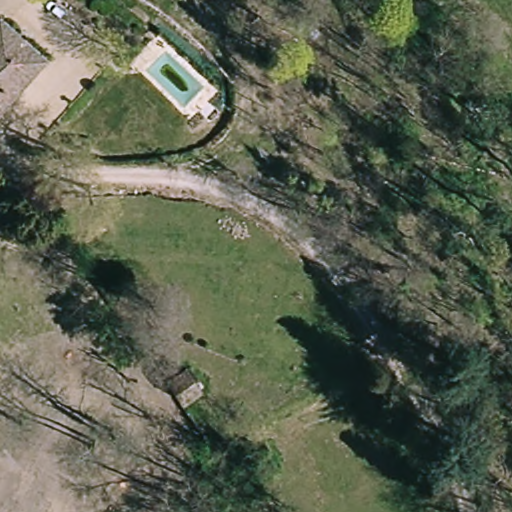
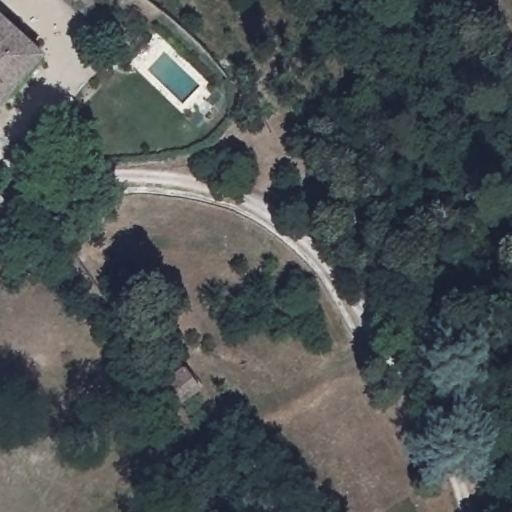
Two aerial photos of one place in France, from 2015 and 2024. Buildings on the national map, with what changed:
unchanged [(0,112),(0,22),(44,59),(0,112)]

